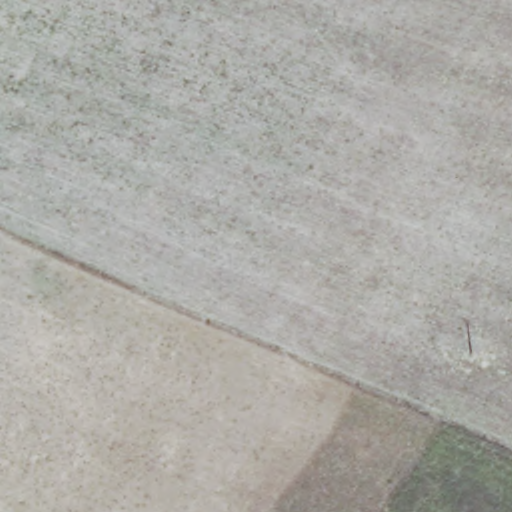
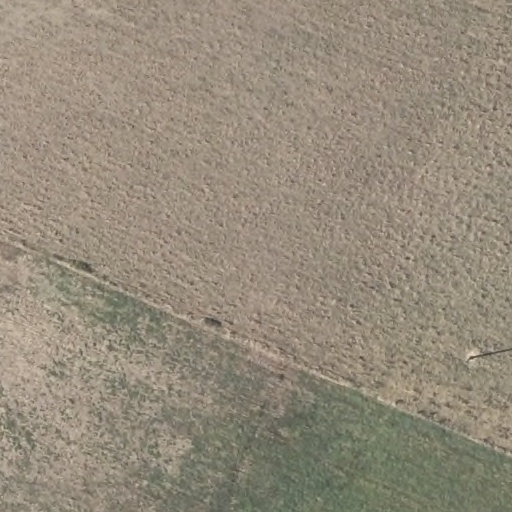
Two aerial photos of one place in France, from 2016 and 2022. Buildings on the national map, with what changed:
[]

